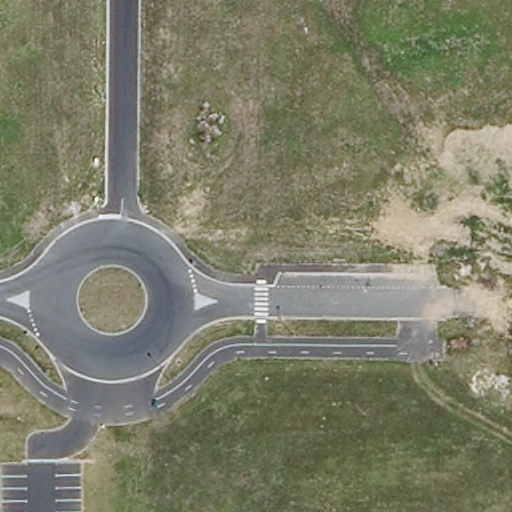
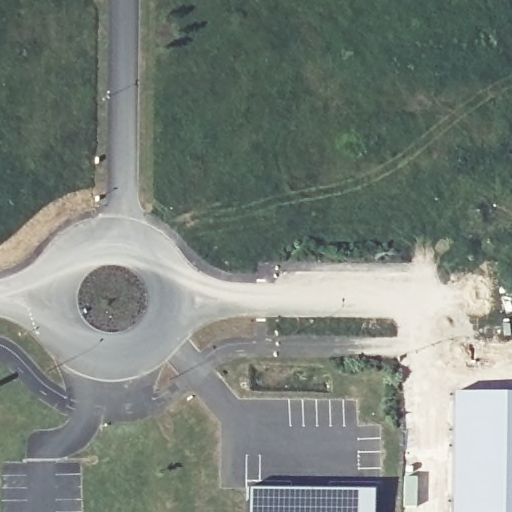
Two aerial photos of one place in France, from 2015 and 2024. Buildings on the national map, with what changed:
new [(451,392),(512,392),(512,512),(450,512),(451,392)]
new [(374,487),(374,512),(247,512),(247,487),(374,487)]

